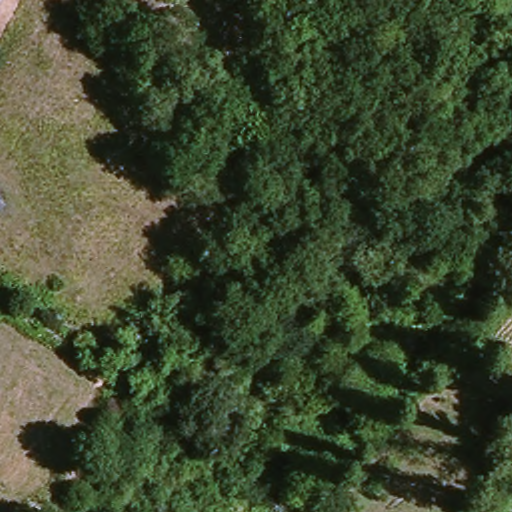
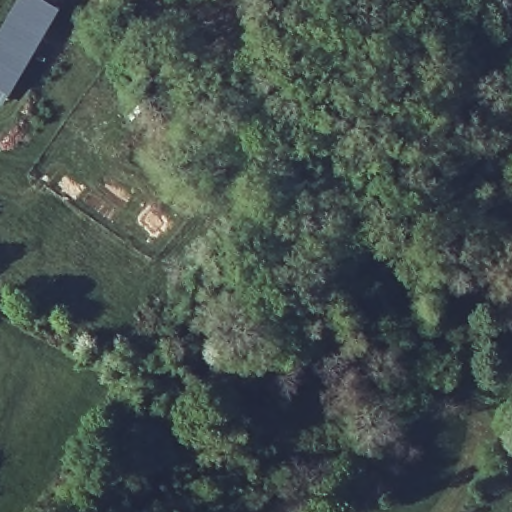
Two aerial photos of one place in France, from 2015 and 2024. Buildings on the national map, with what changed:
new [(9,96),(0,91),(0,31),(17,0),(41,0),(58,9),(9,96)]

